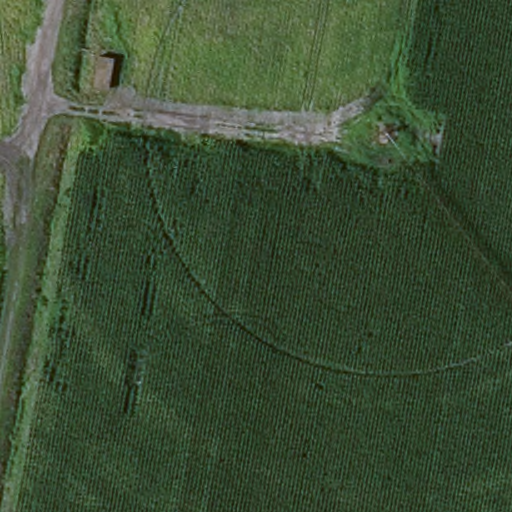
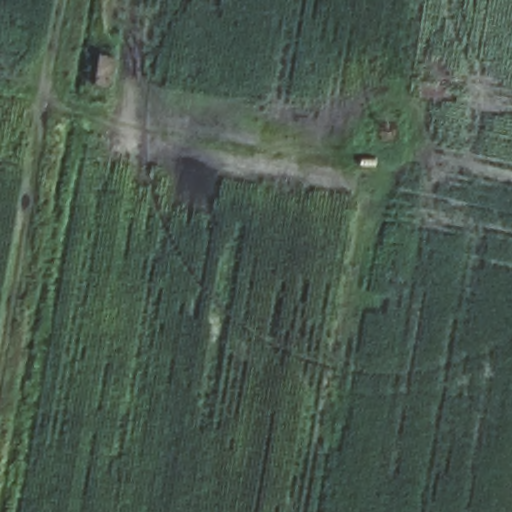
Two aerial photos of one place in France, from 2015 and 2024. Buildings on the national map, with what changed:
unchanged [(112,58),(107,87),(90,87),(97,51),(112,58)]

